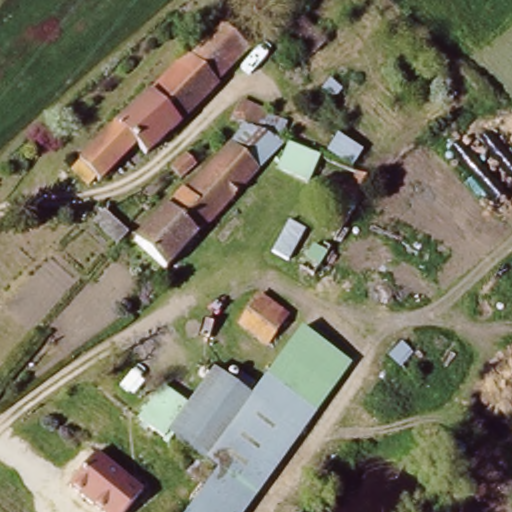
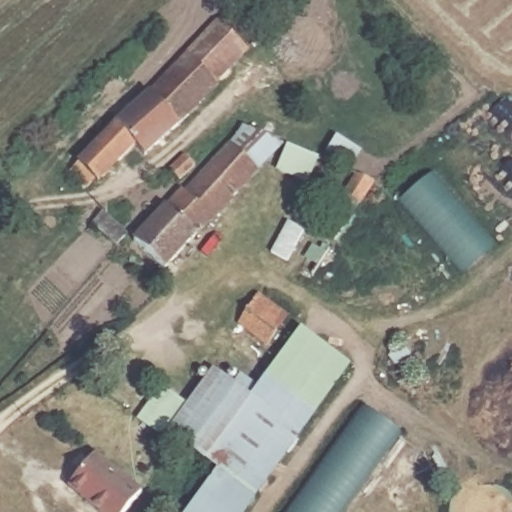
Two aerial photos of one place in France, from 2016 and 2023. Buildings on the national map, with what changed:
unchanged [(240,39),(218,65),(192,42),(213,17),(240,39)]
unchanged [(138,157),(125,150),(112,171),(100,164),(90,180),(76,171),(192,42),(218,65),(138,157)]
unchanged [(241,126),(230,122),(238,103),(273,113),(267,137),(282,152),(161,277),(138,237),(241,126)]
demolished [(302,128),(325,137),(321,151),(328,154),(318,180),(285,168),(302,128)]
unchanged [(347,131),(370,147),(360,164),(337,149),(347,131)]
new [(430,176),(492,247),(463,273),(400,201),(430,176)]
demolished [(325,274),(302,260),(322,229),(345,244),(325,274)]
unchanged [(270,350),(238,330),(252,310),(262,294),(294,312),(281,332),(270,350)]
unchanged [(225,362),(263,392),(312,323),(360,359),(302,436),(216,375),(225,362)]
unchanged [(244,512),(184,512),(214,463),(179,437),(171,448),(138,423),(163,385),(194,403),(216,375),(302,436),(244,512)]
new [(399,431),(341,512),(288,512),(364,405),(399,431)]
unchanged [(106,447),(150,485),(127,512),(113,512),(77,487),(106,447)]

